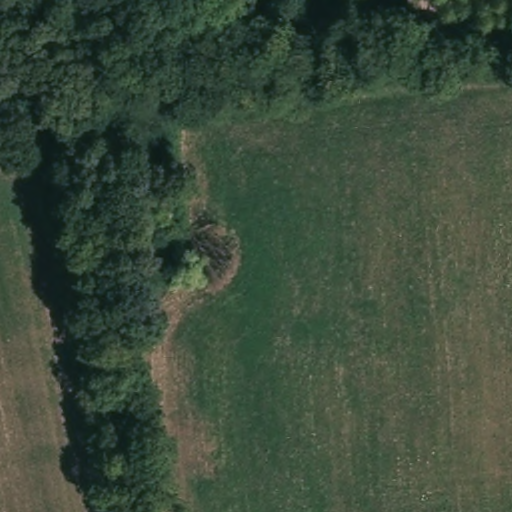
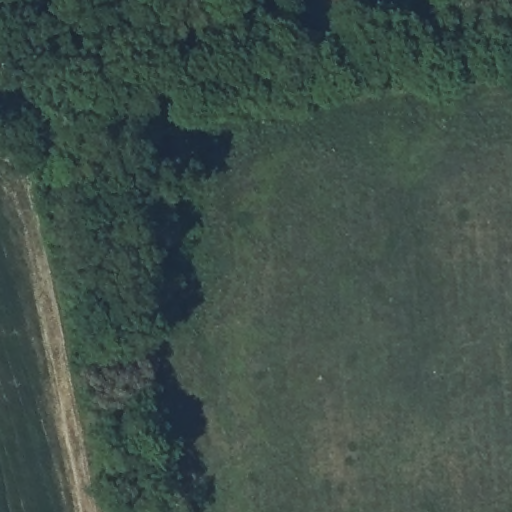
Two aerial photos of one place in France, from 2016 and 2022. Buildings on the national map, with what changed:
[]

